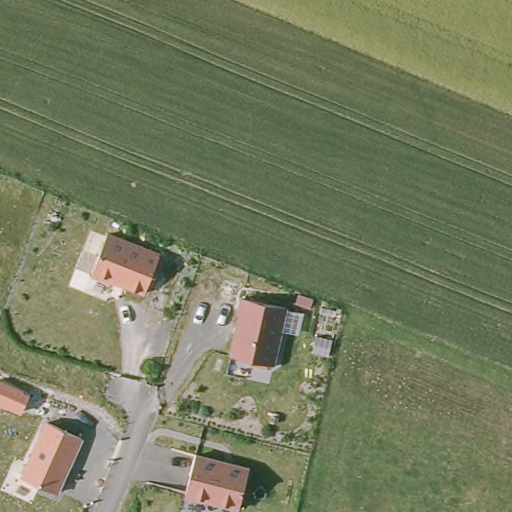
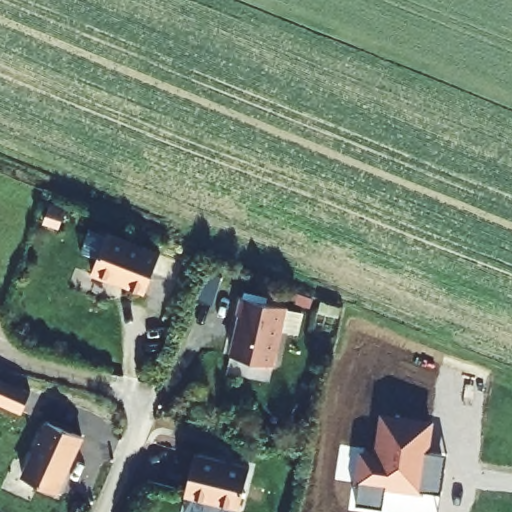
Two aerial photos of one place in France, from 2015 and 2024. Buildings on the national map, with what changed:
unchanged [(143,292),(91,273),(105,231),(159,251),(143,292)]
unchanged [(274,365),(230,357),(241,297),(288,306),(274,365)]
new [(0,404),(0,383),(29,396),(21,413),(0,404)]
new [(424,494),(385,488),(383,507),(356,504),(359,486),(354,485),(361,450),(373,452),(379,412),(434,421),(429,452),(447,453),(442,492),(424,490),(424,494)]
unchanged [(60,494),(22,477),(44,420),(85,437),(60,494)]
unchanged [(239,508),(186,494),(197,451),(250,465),(239,508)]

